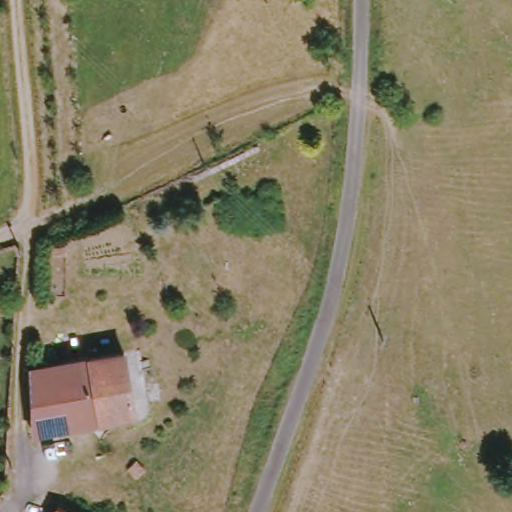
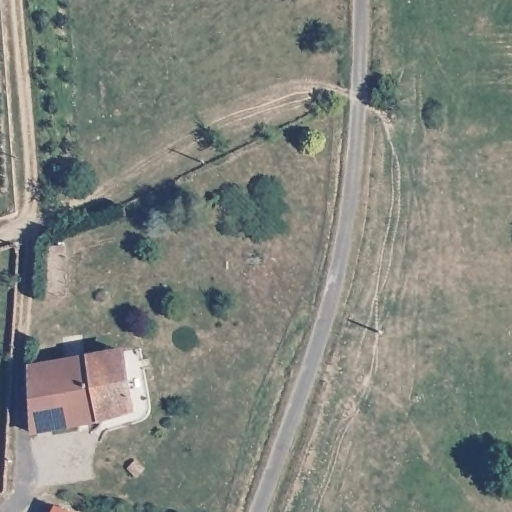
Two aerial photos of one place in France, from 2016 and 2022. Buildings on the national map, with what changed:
unchanged [(26,370),(122,353),(129,412),(96,422),(30,432),(26,370)]
unchanged [(102,512),(51,512),(58,496),(102,512)]

